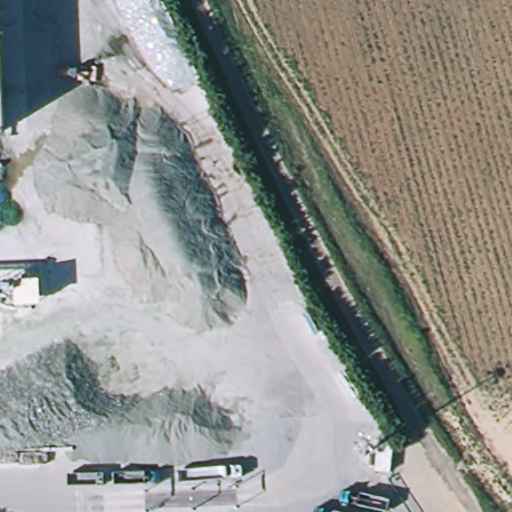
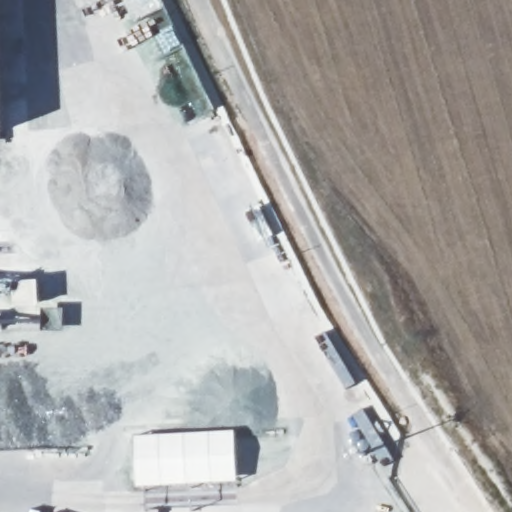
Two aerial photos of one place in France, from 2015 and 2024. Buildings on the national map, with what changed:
unchanged [(0,128),(0,23),(5,128),(0,128)]
new [(38,283),(39,306),(14,307),(13,284),(38,283)]
new [(235,431),(238,482),(137,489),(135,436),(235,431)]

